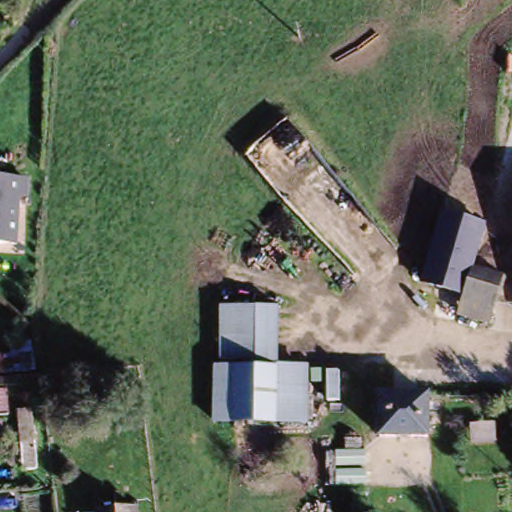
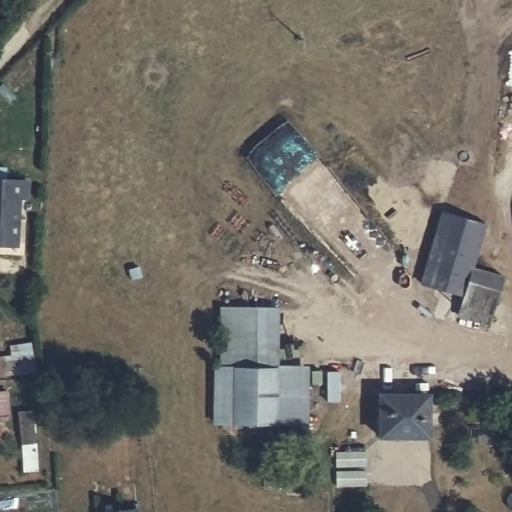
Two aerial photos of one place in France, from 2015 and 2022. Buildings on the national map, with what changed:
unchanged [(36,183),(35,199),(28,199),(26,248),(0,247),(0,182),(36,183)]
unchanged [(438,216),(483,225),(474,268),(508,274),(498,326),(462,319),(467,297),(423,288),(438,216)]
unchanged [(218,325),(280,325),(280,374),(313,374),(312,427),(217,428),(218,325)]
unchanged [(34,374),(2,378),(0,378),(0,357),(1,357),(33,354),(34,374)]
unchanged [(5,390),(6,420),(0,420),(0,390),(5,390)]
unchanged [(378,438),(378,396),(434,395),(435,437),(378,438)]
unchanged [(364,448),(364,462),(335,462),(336,448),(364,448)]
unchanged [(364,468),(364,482),(335,481),(336,467),(364,468)]

